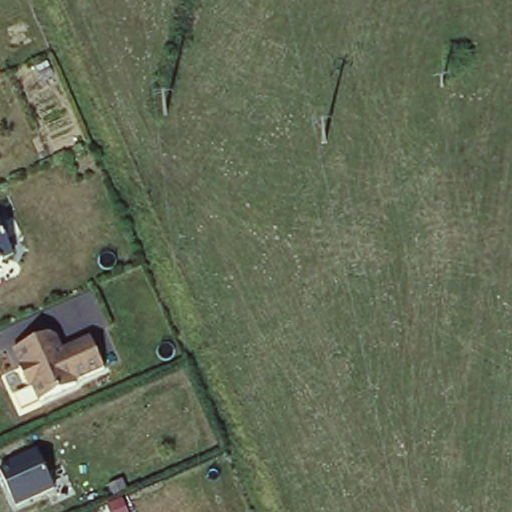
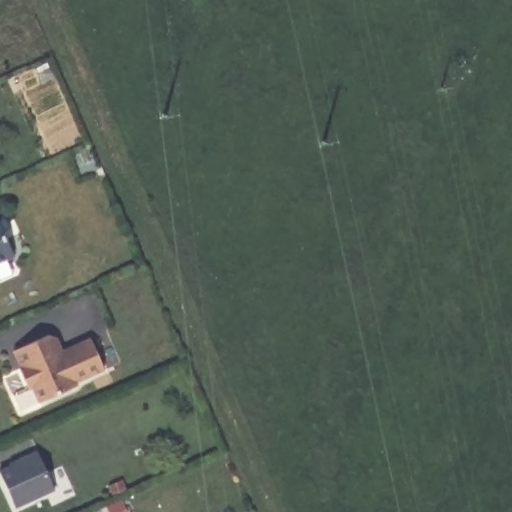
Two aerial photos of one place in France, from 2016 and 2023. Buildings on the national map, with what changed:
unchanged [(14,257),(0,263),(0,221),(14,257)]
unchanged [(61,352),(91,335),(105,372),(38,404),(14,352),(51,331),(61,352)]
unchanged [(40,450),(58,491),(19,508),(4,468),(40,450)]

